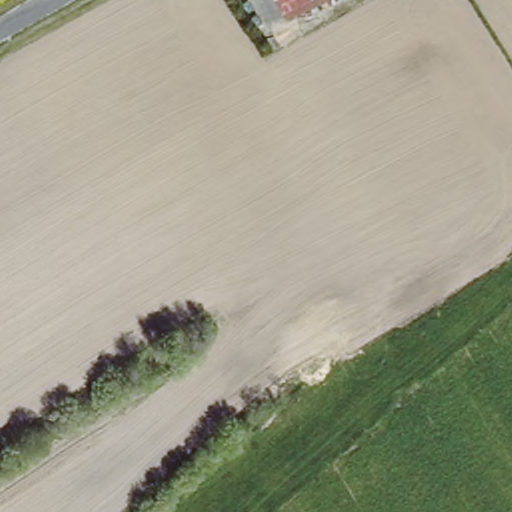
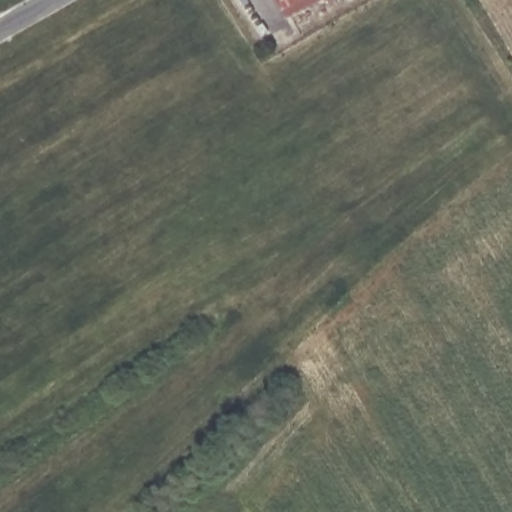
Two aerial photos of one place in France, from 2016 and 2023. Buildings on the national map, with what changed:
unchanged [(270,0),(322,0),(283,22),(270,0)]

